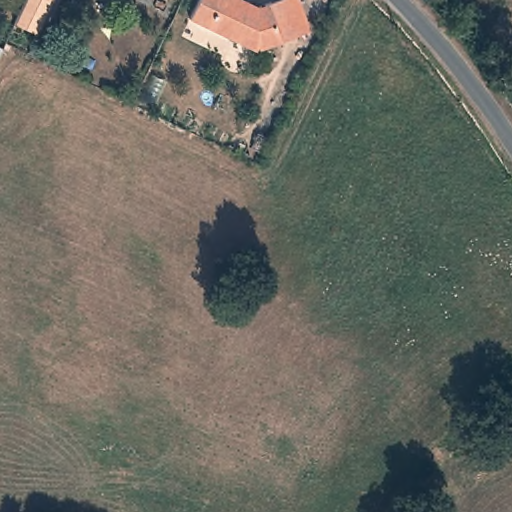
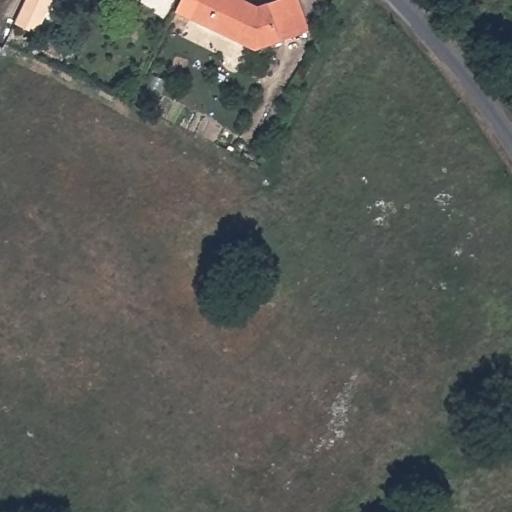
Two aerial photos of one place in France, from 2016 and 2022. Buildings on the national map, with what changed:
unchanged [(38,38),(16,26),(29,0),(59,0),(38,38)]
unchanged [(242,5),(255,10),(276,0),(294,0),(297,8),(303,5),(315,25),(258,56),(190,26),(202,0),(244,0),(242,5)]

